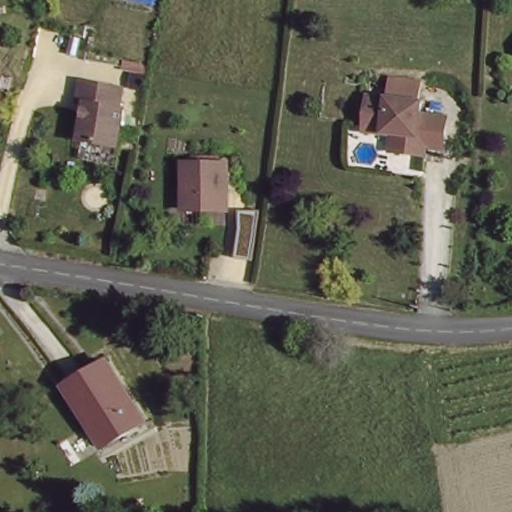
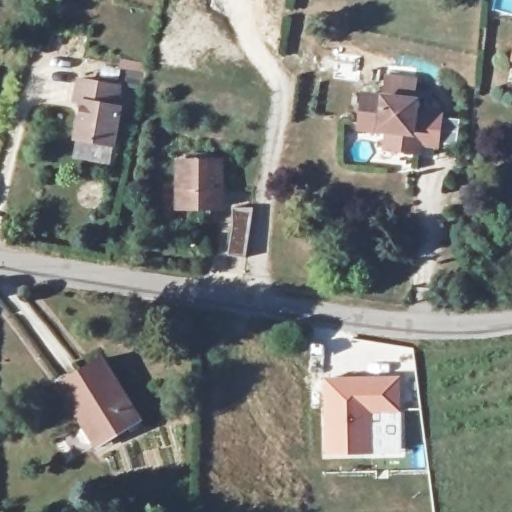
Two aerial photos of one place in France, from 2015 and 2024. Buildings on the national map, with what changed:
unchanged [(118,110),(111,147),(74,139),(81,104),(73,102),(77,80),(116,89),(113,108),(118,110)]
unchanged [(384,130),(357,126),(361,91),(416,99),(415,110),(440,114),(437,146),(417,143),(416,153),(382,149),(384,130)]
unchanged [(181,205),(182,159),(223,160),(223,206),(181,205)]
unchanged [(66,385),(101,361),(136,418),(95,448),(80,423),(85,418),(66,385)]
new [(321,376),(400,375),(401,413),(369,414),(371,456),(323,456),(321,376)]

